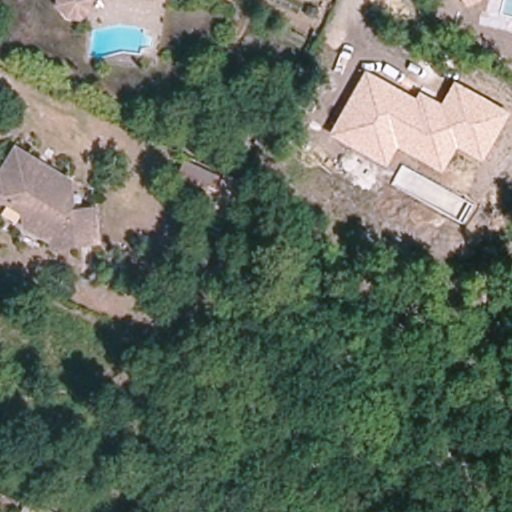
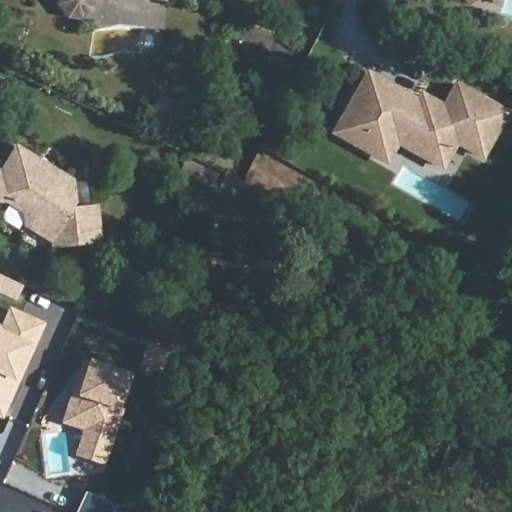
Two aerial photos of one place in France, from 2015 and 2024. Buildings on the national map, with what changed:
unchanged [(86,6),(77,14),(65,12),(56,0),(87,0),(86,6)]
unchanged [(466,7),(462,0),(477,0),(466,7)]
unchanged [(419,92),(441,104),(454,81),(511,112),(482,162),(457,147),(441,172),(397,147),(386,166),(329,134),(365,71),(415,98),(419,92)]
unchanged [(168,121),(175,105),(191,113),(183,128),(168,121)]
unchanged [(0,202),(0,163),(8,148),(29,160),(28,163),(39,169),(48,173),(49,171),(58,176),(64,179),(66,194),(59,194),(60,208),(83,205),(86,235),(46,240),(44,220),(22,222),(21,213),(7,205),(1,202),(0,202)]
unchanged [(227,196),(179,175),(186,161),(233,183),(227,196)]
new [(45,324),(1,420),(0,419),(0,324),(7,308),(45,324)]
new [(59,424),(68,397),(74,400),(87,360),(130,373),(100,465),(74,456),(81,431),(59,424)]

